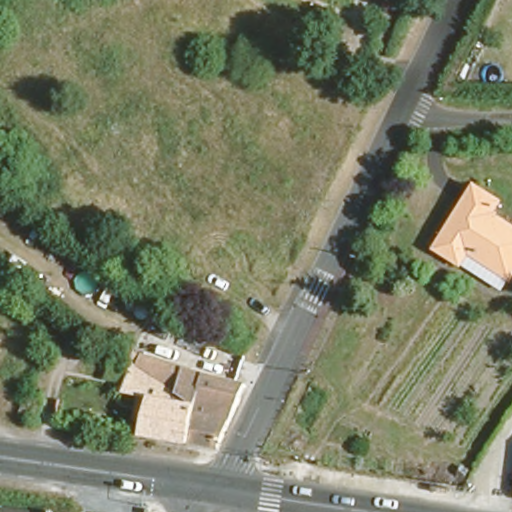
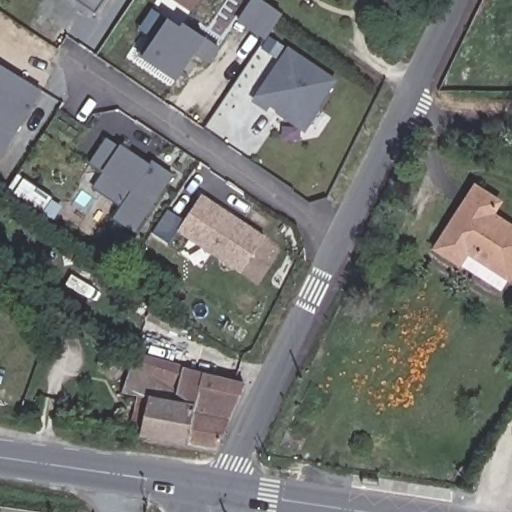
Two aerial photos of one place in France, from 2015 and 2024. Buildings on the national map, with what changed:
new [(78,0),(103,0),(95,12),(78,0)]
new [(262,0),(282,14),(266,39),(239,20),(252,0),(262,0)]
new [(167,19),(181,27),(185,22),(205,38),(219,47),(209,60),(195,52),(176,81),(141,57),(167,19)]
new [(290,47),(336,80),(305,132),(270,107),(267,111),(252,101),(290,47)]
new [(42,91),(0,160),(0,159),(0,64),(42,91)]
new [(131,191),(102,171),(90,163),(107,137),(120,146),(150,165),(152,162),(171,175),(135,232),(113,217),(131,191)]
unchanged [(464,245),(453,258),(432,245),(476,178),(497,193),(487,209),(512,225),(512,261),(505,272),(464,245)]
new [(265,237),(240,273),(177,231),(202,195),(265,237)]
unchanged [(219,445),(192,445),(142,440),(150,398),(126,393),(132,364),(139,366),(140,357),(205,375),(247,382),(219,445)]

